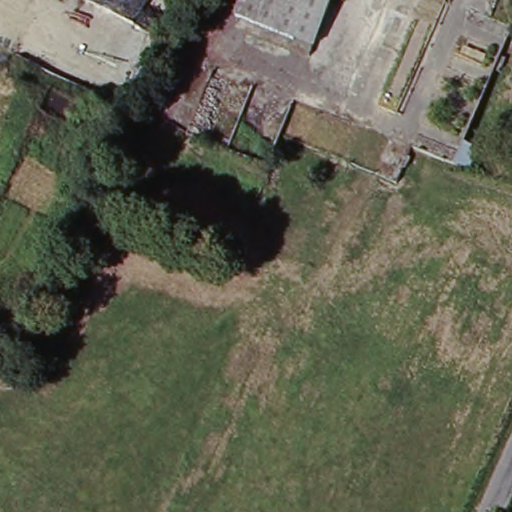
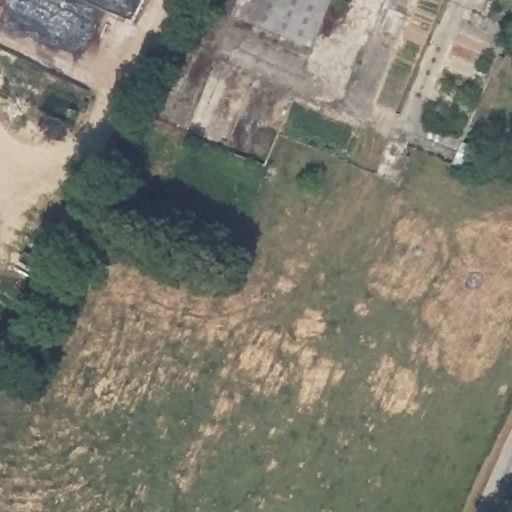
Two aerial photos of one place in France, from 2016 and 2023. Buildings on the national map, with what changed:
unchanged [(311,56),(231,22),(241,0),(335,0),(311,56)]

